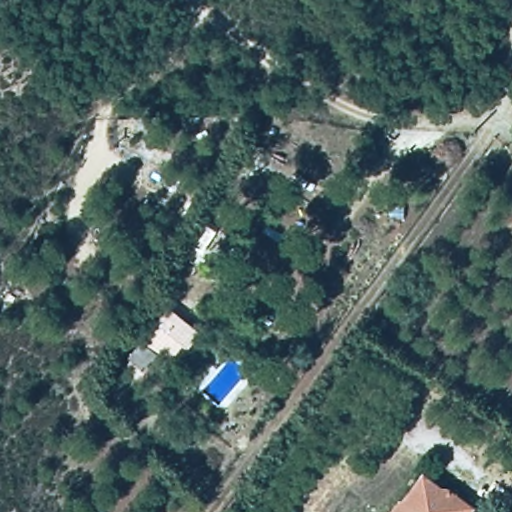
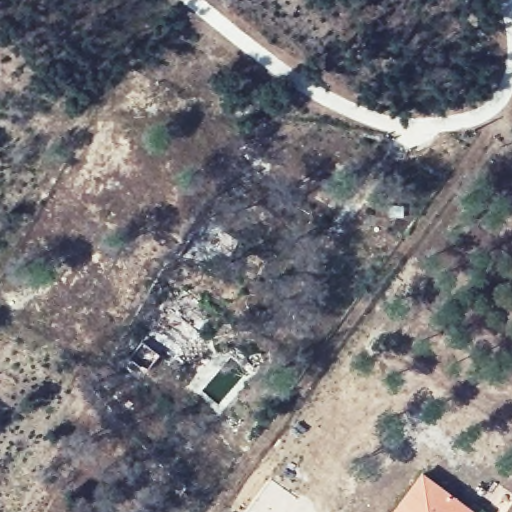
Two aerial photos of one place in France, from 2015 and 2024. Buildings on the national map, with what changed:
unchanged [(190,332),(148,380),(125,359),(167,311),(190,332)]
unchanged [(468,512),(397,512),(423,477),(468,512)]

